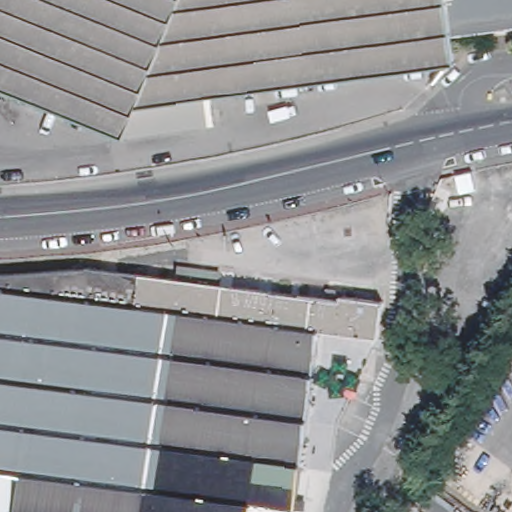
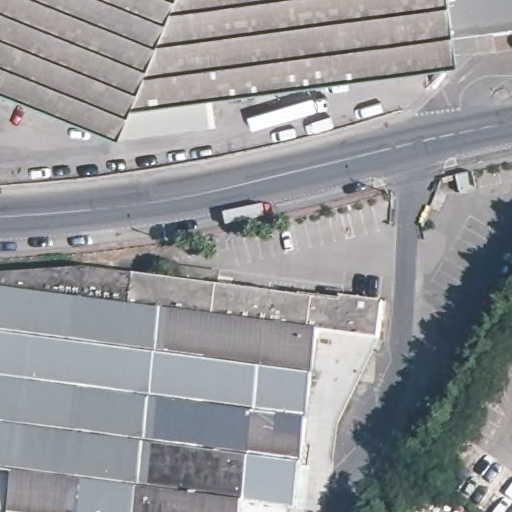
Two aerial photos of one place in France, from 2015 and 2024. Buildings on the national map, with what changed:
unchanged [(0,84),(0,0),(512,0),(512,15),(455,21),(460,51),(460,58),(434,62),(215,91),(218,119),(197,122),(119,132),(0,84)]
unchanged [(139,270),(183,275),(185,261),(226,266),(224,280),(344,295),(345,291),(387,296),(382,334),(324,326),(299,504),(293,504),(291,512),(0,512),(0,267),(139,270)]

